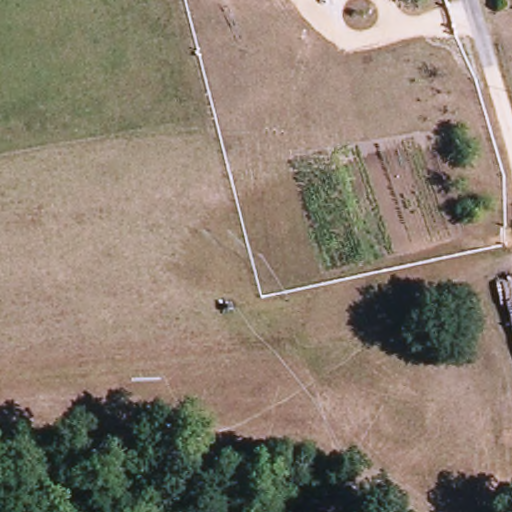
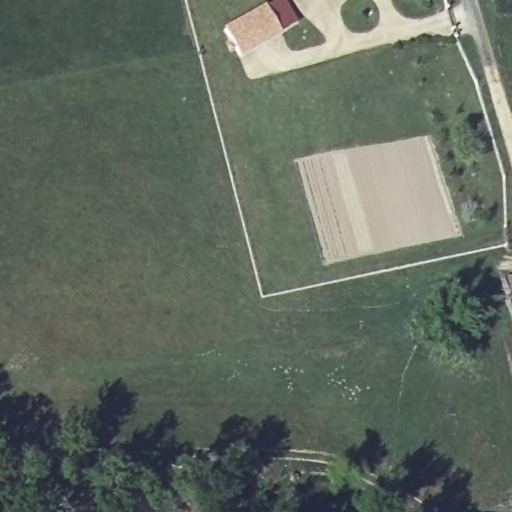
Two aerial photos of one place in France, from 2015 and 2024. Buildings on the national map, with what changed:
new [(224,28),(274,0),(286,0),(299,22),(241,56),(224,28)]

